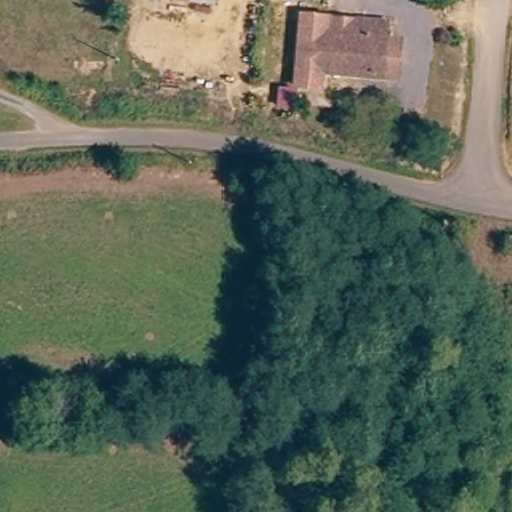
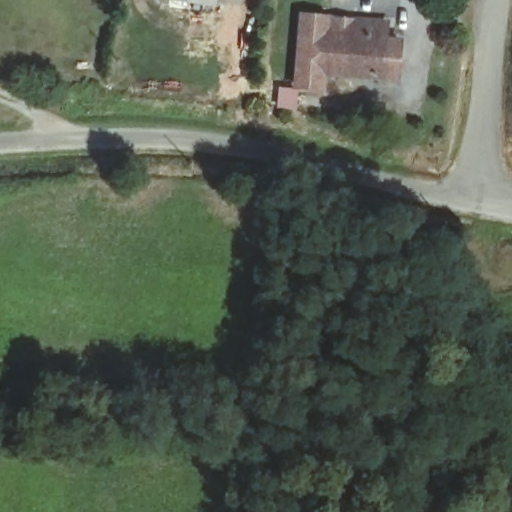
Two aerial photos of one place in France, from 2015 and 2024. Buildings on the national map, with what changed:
unchanged [(182,0),(216,0),(215,5),(182,0)]
unchanged [(395,83),(375,81),(318,71),(317,88),(293,84),(306,13),(389,26),(388,44),(401,48),(395,83)]
unchanged [(291,86),(288,104),(273,101),(274,84),(291,86)]

